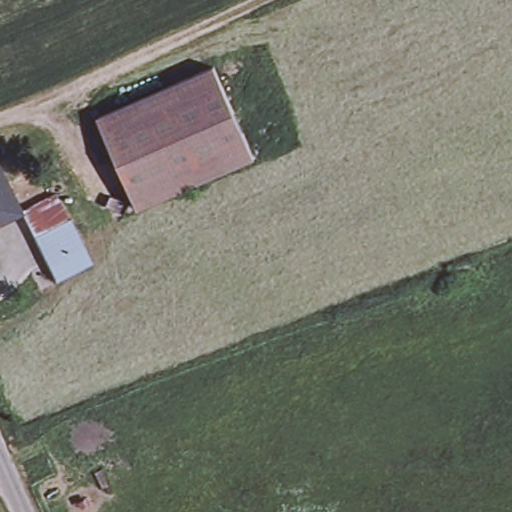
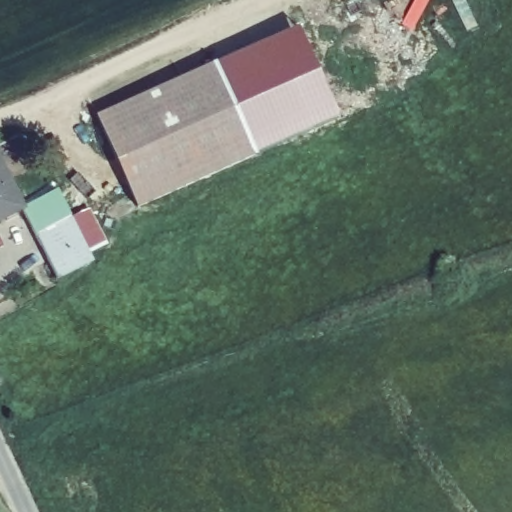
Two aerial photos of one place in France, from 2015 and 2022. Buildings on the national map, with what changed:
new [(216,62),(299,26),(339,114),(256,150),(216,62)]
unchanged [(216,62),(256,150),(138,203),(100,114),(216,62)]
unchanged [(0,223),(0,158),(27,210),(0,223)]
unchanged [(27,210),(64,193),(77,218),(39,234),(27,210)]
unchanged [(77,218),(99,261),(62,279),(39,234),(77,218)]

